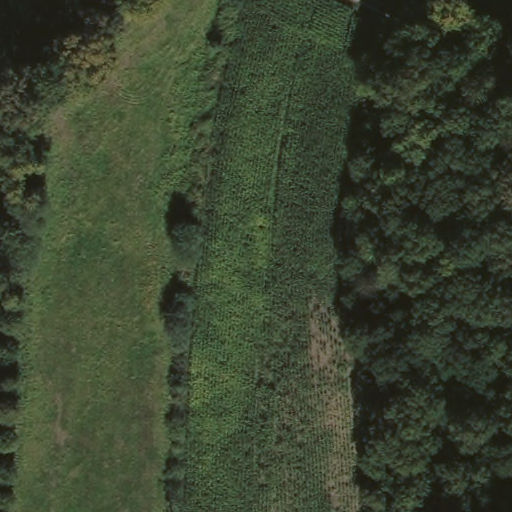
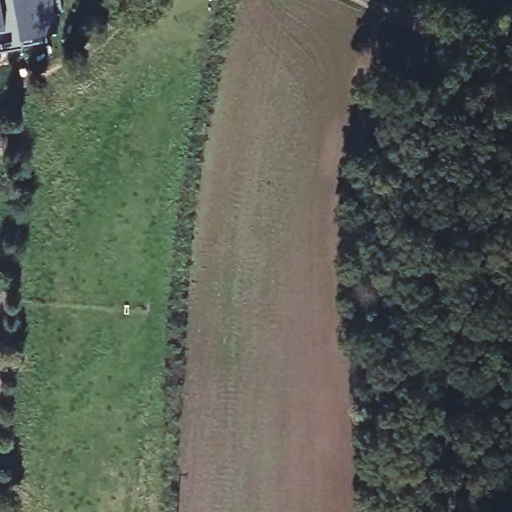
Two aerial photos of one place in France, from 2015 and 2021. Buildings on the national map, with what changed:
new [(22,47),(22,49),(0,53),(0,0),(14,0),(22,47)]
new [(63,16),(55,17),(58,34),(45,36),(46,43),(22,47),(14,0),(60,0),(63,16)]
unchanged [(1,141),(0,156),(0,155),(0,141),(1,141)]

